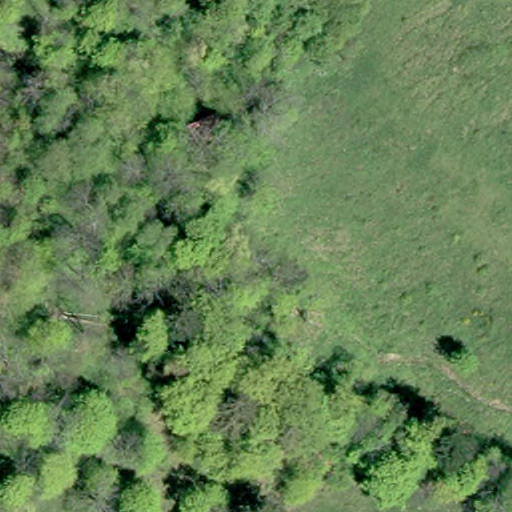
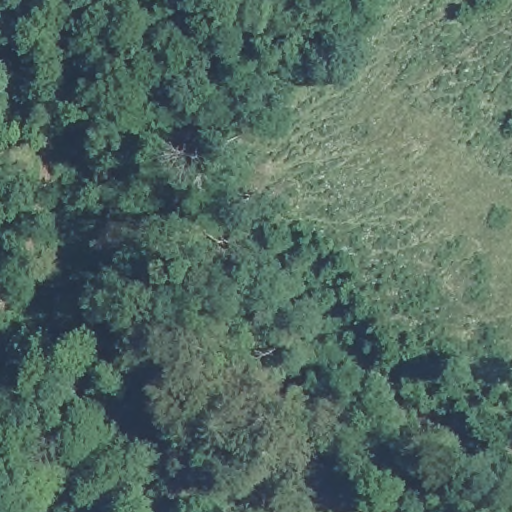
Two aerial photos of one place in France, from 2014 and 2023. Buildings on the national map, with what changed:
[]

